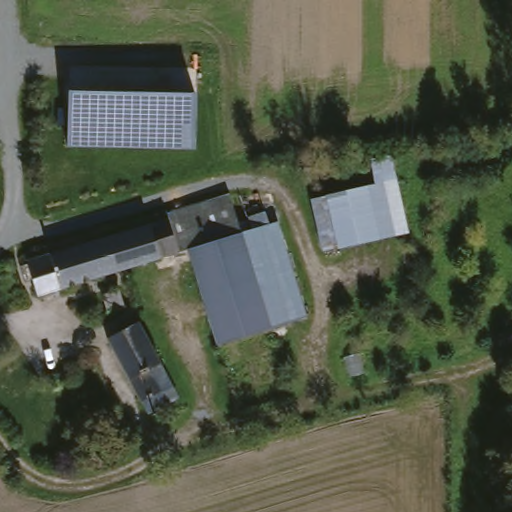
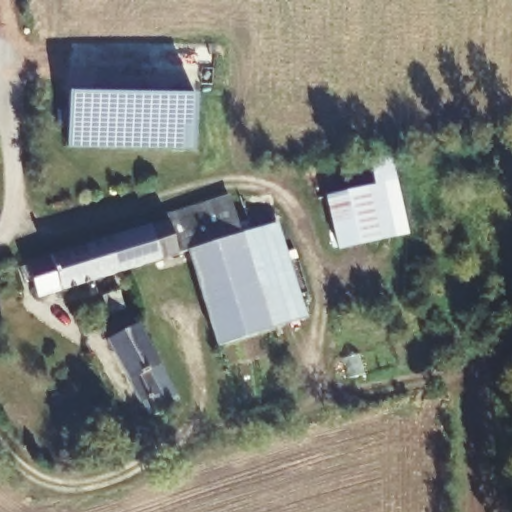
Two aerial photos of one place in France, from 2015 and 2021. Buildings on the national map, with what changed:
unchanged [(194,150),(66,148),(69,91),(196,95),(194,150)]
unchanged [(357,190),(351,166),(399,152),(419,225),(371,238),(357,190)]
unchanged [(371,238),(320,252),(306,205),(357,190),(371,238)]
unchanged [(314,320),(226,345),(197,249),(186,252),(176,219),(174,213),(237,195),(248,234),(285,224),(314,320)]
unchanged [(26,262),(36,259),(176,219),(186,252),(47,293),(42,277),(31,281),(26,262)]
unchanged [(170,371),(155,377),(165,401),(146,409),(118,342),(152,329),(170,371)]

